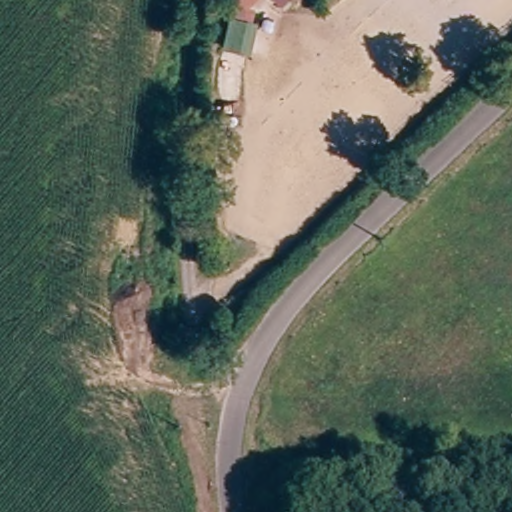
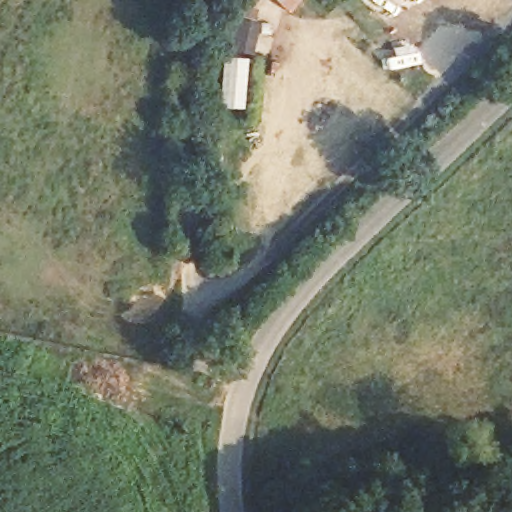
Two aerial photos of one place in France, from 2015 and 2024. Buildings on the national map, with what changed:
unchanged [(222,46),(231,0),(257,0),(251,5),(257,8),(254,20),(258,21),(250,55),(222,46)]
unchanged [(281,5),(275,0),(285,0),(281,5)]

